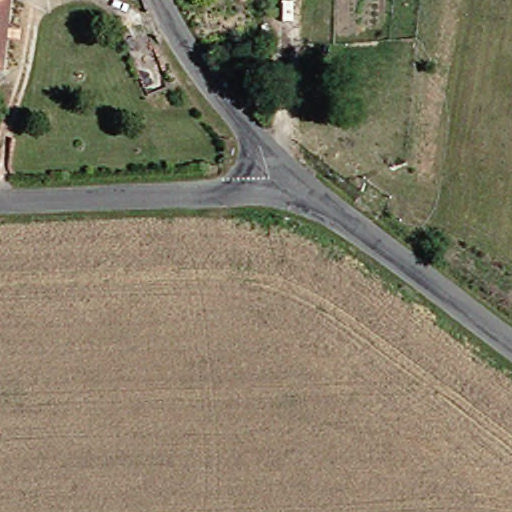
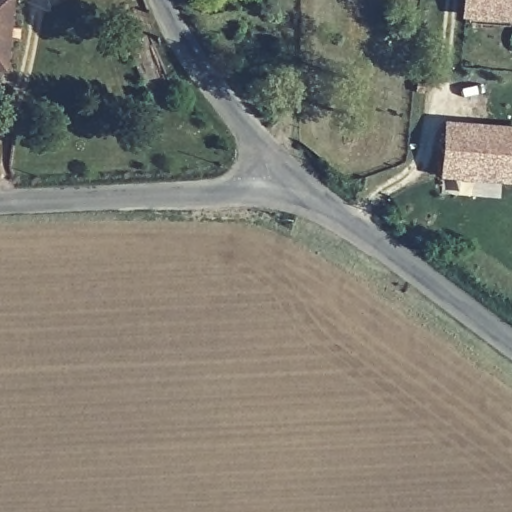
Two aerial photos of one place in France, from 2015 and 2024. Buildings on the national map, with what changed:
unchanged [(12,69),(0,68),(0,0),(20,0),(12,69)]
new [(512,23),(461,20),(463,0),(512,0),(512,23)]
new [(445,122),(512,126),(512,185),(440,180),(445,122)]

